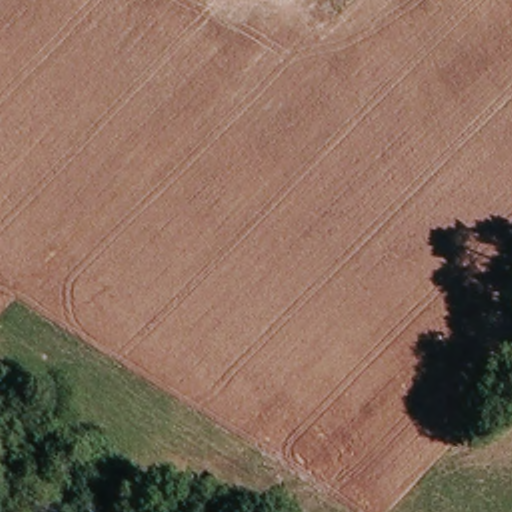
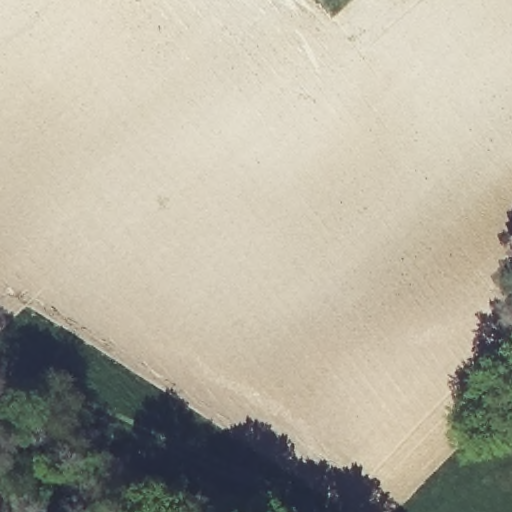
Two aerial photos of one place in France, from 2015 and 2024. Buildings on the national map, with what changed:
[]

